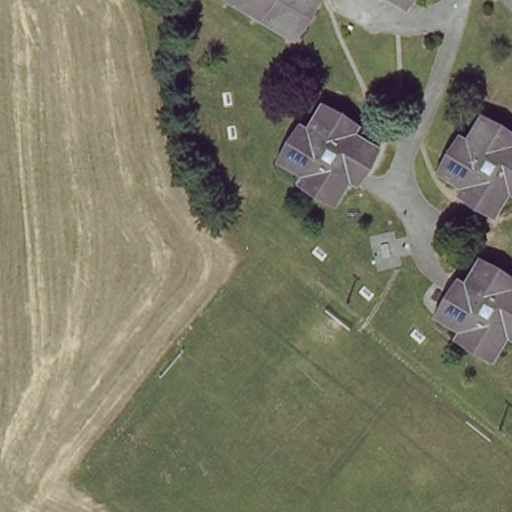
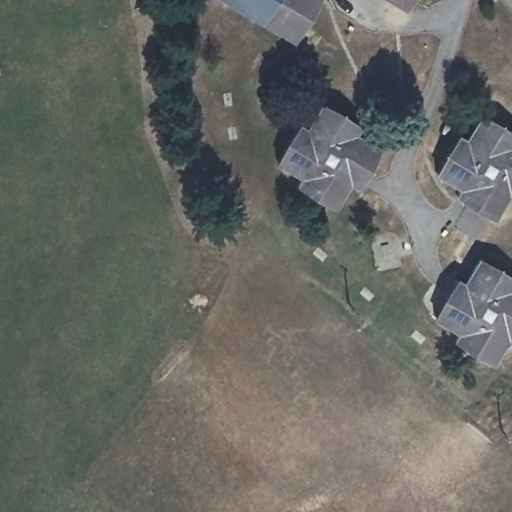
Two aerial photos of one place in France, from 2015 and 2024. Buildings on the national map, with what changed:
unchanged [(332,4),(310,47),(224,0),(327,0),(332,4)]
unchanged [(298,120),(308,127),(322,100),(355,119),(351,131),(377,144),(366,164),(356,183),(347,179),(330,202),(293,182),(298,172),(274,156),(298,120)]
unchanged [(467,136),(480,112),(512,130),(512,138),(510,140),(512,141),(512,191),(508,189),(491,214),(469,200),(455,192),(462,182),(436,167),(455,130),(467,136)]
unchanged [(445,287),(452,291),(468,263),(505,284),(500,293),(512,300),(512,343),(507,351),(500,346),(485,370),(447,348),(452,340),(424,324),(441,295),(445,287)]

